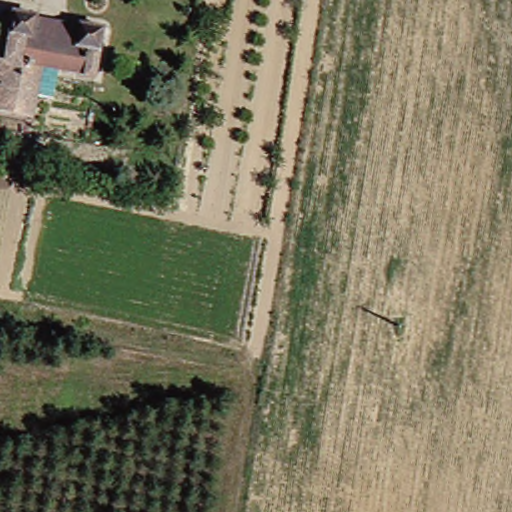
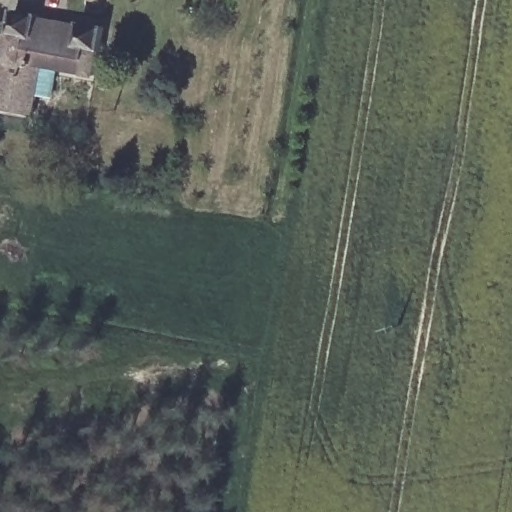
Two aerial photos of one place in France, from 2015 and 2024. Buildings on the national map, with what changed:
unchanged [(0,109),(0,21),(2,7),(26,12),(64,18),(86,21),(77,71),(25,62),(17,112),(0,109)]

